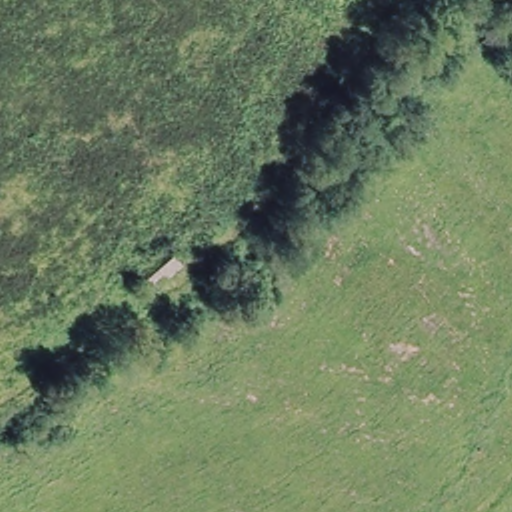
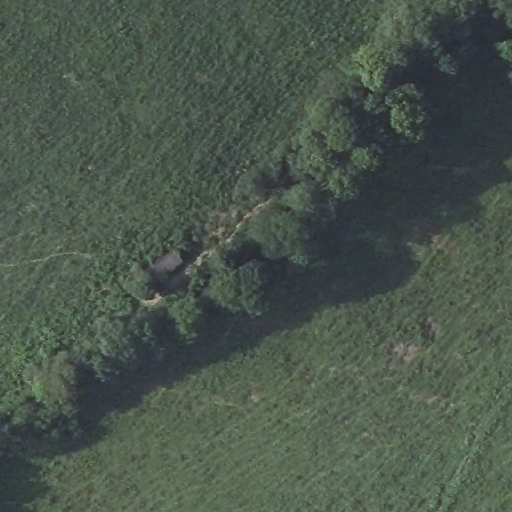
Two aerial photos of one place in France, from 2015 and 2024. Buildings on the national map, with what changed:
unchanged [(166,251),(179,267),(146,292),(135,278),(166,251)]

